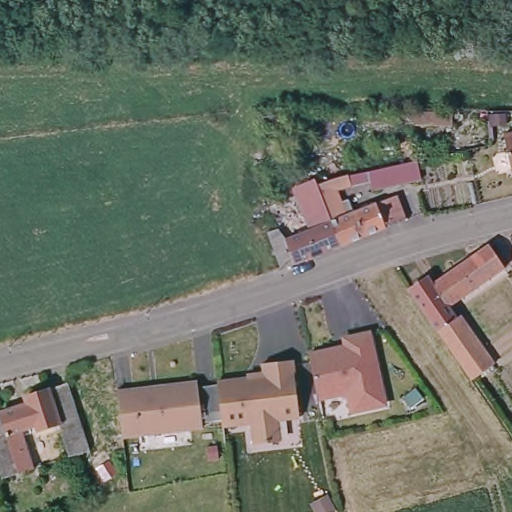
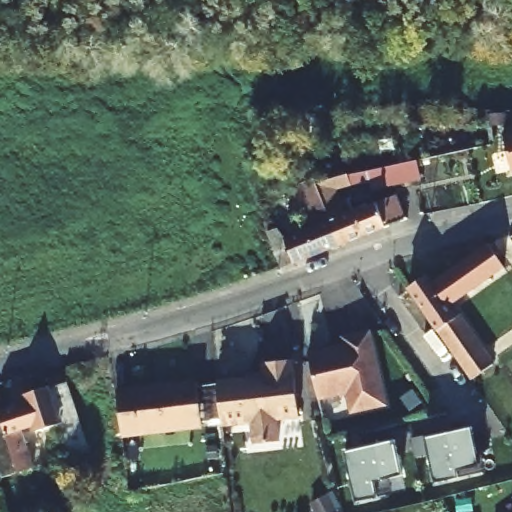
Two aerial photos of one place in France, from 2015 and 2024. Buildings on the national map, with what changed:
unchanged [(503,130),(512,127),(512,165),(510,165),(503,130)]
unchanged [(316,185),(349,170),(417,158),(420,179),(371,187),(370,180),(336,188),(341,201),(348,198),(351,211),(396,194),(406,217),(339,244),(316,185)]
unchanged [(339,244),(280,267),(266,230),(276,225),(284,238),(314,224),(301,190),(316,185),(339,244)]
unchanged [(504,264),(448,303),(456,315),(458,313),(492,360),(470,376),(466,369),(408,287),(427,274),(432,280),(487,241),(504,264)]
unchanged [(351,416),(344,394),(321,400),(308,353),(342,345),(339,337),(372,330),(389,407),(351,416)]
unchanged [(218,404),(218,397),(218,395),(217,390),(216,382),(223,381),(242,379),(263,376),(261,364),(291,360),(299,418),(276,420),(279,442),(253,445),(251,423),(234,425),(221,427),(218,404)]
unchanged [(88,445),(68,452),(57,417),(20,429),(32,464),(2,474),(0,467),(0,409),(26,400),(24,393),(66,379),(88,445)]
unchanged [(122,438),(121,434),(120,426),(119,413),(118,408),(117,397),(116,394),(123,393),(149,390),(149,391),(151,393),(158,392),(159,390),(159,389),(198,385),(201,411),(203,430),(169,434),(134,438),(122,440),(122,438)]
new [(472,428),(481,473),(434,484),(424,438),(472,428)]
new [(402,476),(382,480),(385,496),(356,503),(344,452),(394,441),(402,476)]

